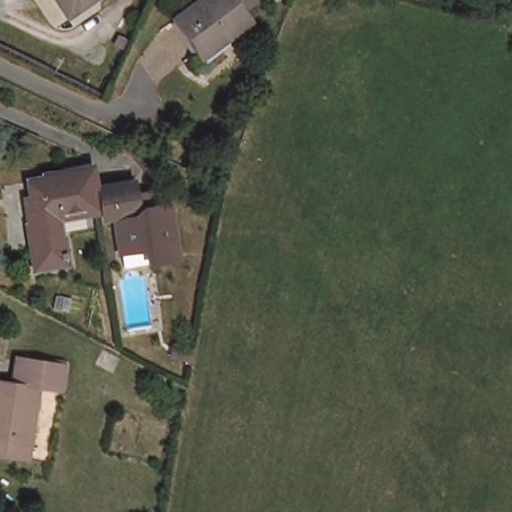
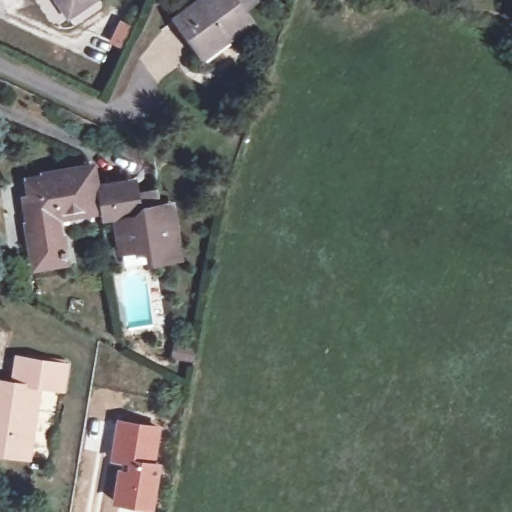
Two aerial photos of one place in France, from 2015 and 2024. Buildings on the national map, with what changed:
unchanged [(70,18),(57,0),(96,0),(70,18)]
unchanged [(198,51),(173,20),(199,0),(244,0),(239,5),(251,21),(225,41),(202,57),(198,51)]
unchanged [(103,216),(104,220),(60,228),(64,247),(68,246),(71,261),(73,260),(74,266),(72,267),(74,272),(43,277),(35,240),(36,240),(29,208),(35,207),(31,191),(46,189),(46,186),(93,176),(97,200),(100,199),(103,216)]
unchanged [(100,199),(138,192),(140,202),(161,199),(163,214),(175,211),(185,263),(158,268),(155,254),(129,258),(121,222),(110,225),(108,215),(105,216),(103,216),(100,199)]
unchanged [(18,382),(21,357),(70,364),(68,386),(40,382),(40,386),(43,387),(36,453),(0,448),(0,380),(18,382)]
new [(116,418),(163,426),(157,461),(163,462),(155,510),(112,505),(118,462),(109,462),(116,418)]

